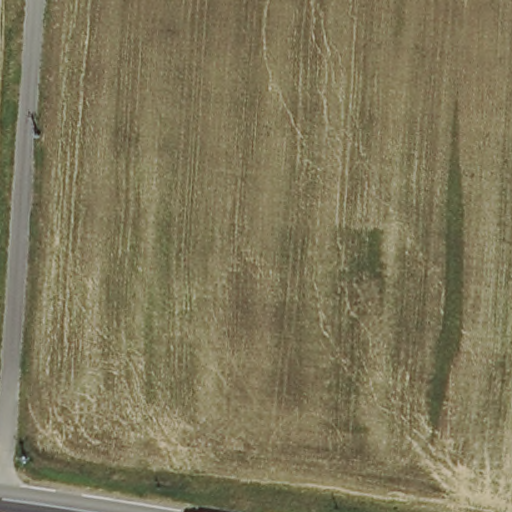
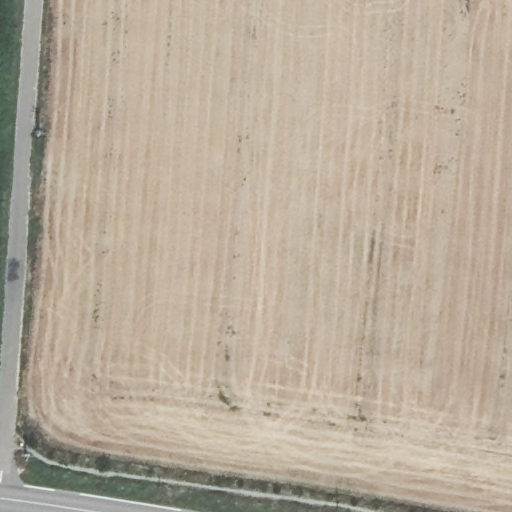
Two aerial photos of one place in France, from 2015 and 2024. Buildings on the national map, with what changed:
[]

